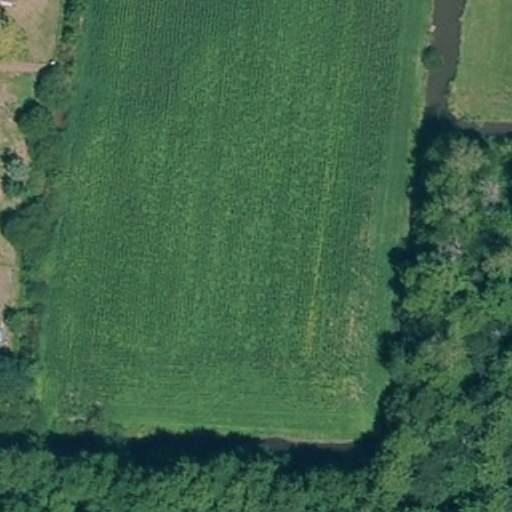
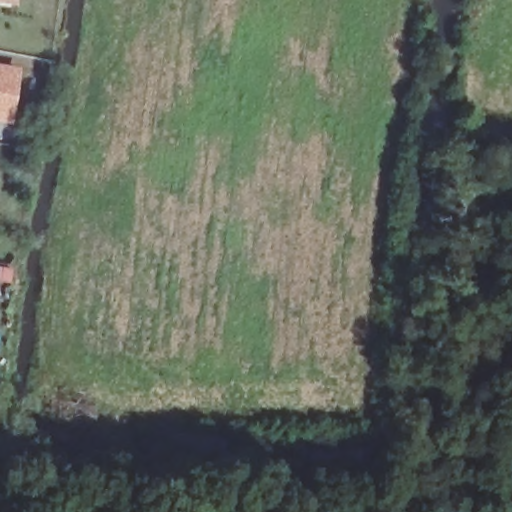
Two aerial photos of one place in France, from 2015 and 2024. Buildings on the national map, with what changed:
unchanged [(0,0),(16,0),(15,5),(0,2),(0,0)]
new [(12,125),(0,123),(0,63),(20,66),(12,125)]

